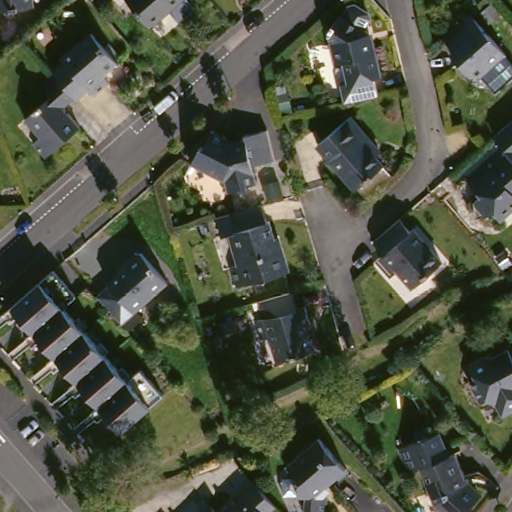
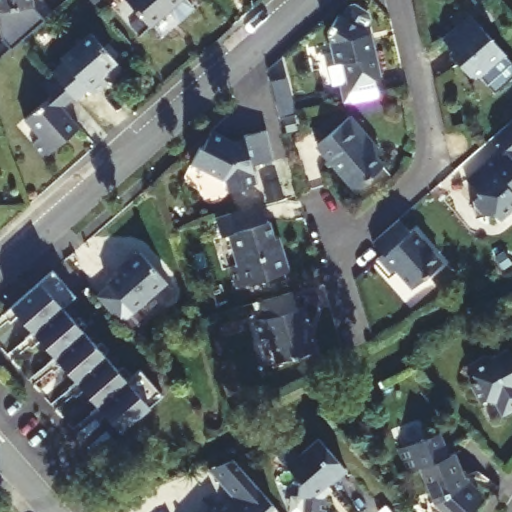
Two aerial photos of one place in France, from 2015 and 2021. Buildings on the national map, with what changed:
unchanged [(0,0),(34,0),(35,14),(0,18),(0,0)]
unchanged [(189,0),(154,25),(135,0),(189,0)]
unchanged [(358,82),(356,63),(344,64),(340,35),(349,16),(355,19),(361,8),(366,6),(380,14),(382,19),(376,30),(378,32),(381,45),(382,48),(387,47),(392,76),(384,77),(387,93),(352,100),(350,84),(358,82)]
unchanged [(480,17),(512,55),(512,56),(480,84),(457,58),(465,52),(454,39),(480,17)]
unchanged [(72,65),(67,60),(102,28),(130,59),(114,73),(121,81),(105,95),(96,85),(84,96),(72,82),(65,72),(72,65)]
unchanged [(72,107),(87,125),(53,156),(37,138),(44,133),(29,117),(55,93),(49,86),(65,72),(72,82),(84,96),(72,107)]
unchanged [(357,191),(320,148),(356,116),(386,151),(375,161),(382,169),(357,191)]
unchanged [(486,191),(472,174),(509,140),(503,133),(512,125),(512,212),(507,215),(500,207),(495,211),(481,196),(486,191)]
unchanged [(268,162),(268,169),(262,169),(265,183),(234,189),(229,176),(200,155),(206,146),(214,145),(222,130),(239,143),(253,141),(252,134),(280,130),(285,159),(268,162)]
unchanged [(272,200),(276,217),(282,216),(289,243),(293,242),(300,265),(244,281),(238,258),(246,256),(237,227),(231,229),(226,213),(272,200)]
unchanged [(389,231),(398,223),(410,234),(418,225),(452,256),(422,289),(398,268),(385,256),(389,251),(380,242),(389,231)]
unchanged [(172,280),(125,321),(102,294),(101,293),(114,282),(112,279),(131,263),(132,258),(142,249),(147,250),(172,280)]
unchanged [(62,266),(84,292),(71,303),(135,377),(146,367),(169,394),(128,428),(114,412),(104,422),(95,411),(106,402),(91,384),(80,393),(72,384),(82,375),(71,362),(61,370),(52,360),(62,351),(51,337),(41,346),(32,335),(42,327),(27,311),(18,319),(11,311),(62,266)]
unchanged [(291,294),(297,292),(302,311),(315,307),(327,352),(285,364),(278,340),(270,342),(265,326),(272,324),(265,301),(291,294)]
unchanged [(512,349),(512,413),(506,416),(497,399),(487,405),(473,385),(482,379),(472,363),(485,354),(497,359),(512,349)]
unchanged [(327,434),(356,465),(338,480),(337,491),(339,492),(337,511),(315,508),(317,490),(308,488),(311,472),(301,459),(327,434)]
unchanged [(453,512),(436,512),(421,497),(411,470),(400,475),(389,451),(426,434),(436,457),(444,453),(455,481),(467,493),(453,512)]
unchanged [(278,499),(267,509),(269,512),(223,512),(220,508),(235,495),(239,500),(249,490),(262,479),(278,499)]
unchanged [(0,496),(0,495),(1,496),(0,496)]
unchanged [(215,503),(220,508),(223,512),(205,512),(215,503)]

